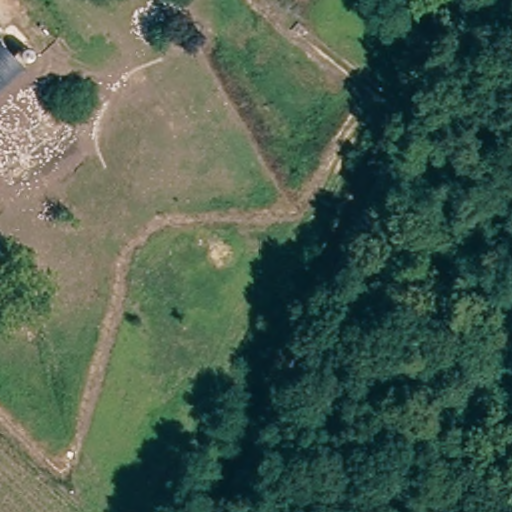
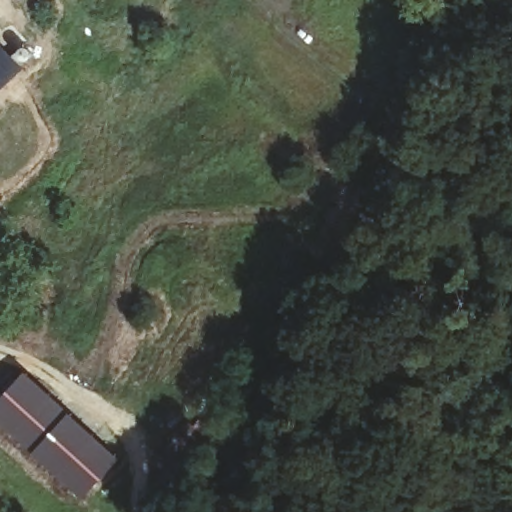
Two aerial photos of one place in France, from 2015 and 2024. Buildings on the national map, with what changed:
unchanged [(0,86),(0,39),(24,64),(0,86)]
new [(0,399),(25,372),(120,458),(82,497),(0,422),(0,399)]

